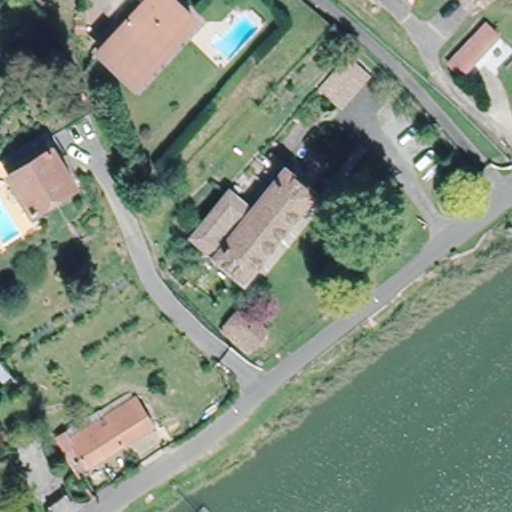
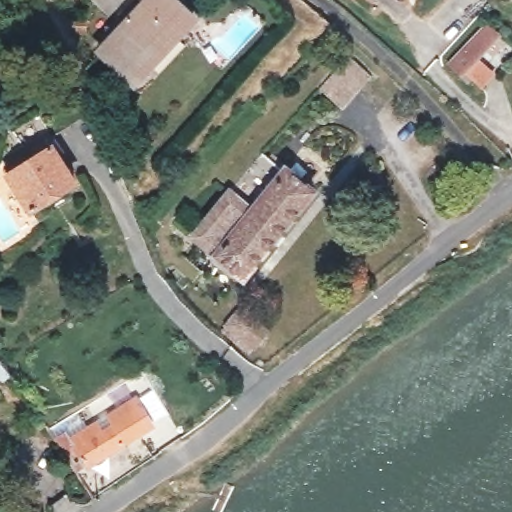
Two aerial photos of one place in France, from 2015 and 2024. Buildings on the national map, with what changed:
unchanged [(106,9),(96,0),(137,0),(130,7),(118,20),(106,9)]
unchanged [(198,20),(139,83),(110,58),(136,28),(127,21),(145,1),(154,9),(162,0),(177,0),(198,20)]
unchanged [(497,39),(468,72),(456,60),(486,28),(497,39)]
unchanged [(215,46),(221,39),(224,42),(239,55),(232,62),(215,46)]
unchanged [(345,62),(364,78),(336,109),(317,92),(345,62)]
unchanged [(27,167),(55,145),(78,178),(34,210),(6,171),(21,160),(27,167)]
unchanged [(312,190),(242,276),(192,235),(260,150),(312,190)]
unchanged [(186,250),(210,268),(200,280),(177,262),(186,250)]
unchanged [(236,312),(260,330),(246,349),(222,330),(236,312)]
unchanged [(61,445),(110,415),(134,399),(150,423),(127,438),(77,469),(61,445)]

